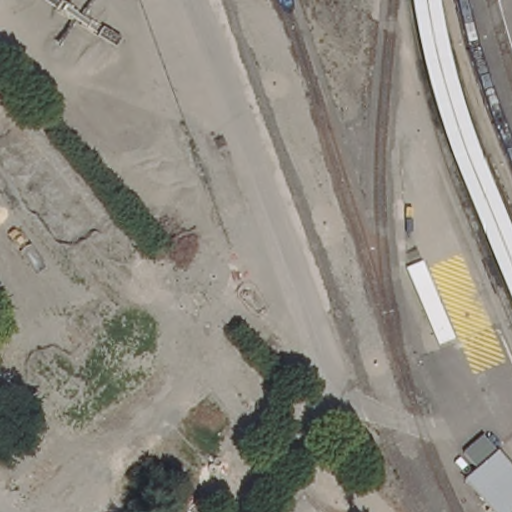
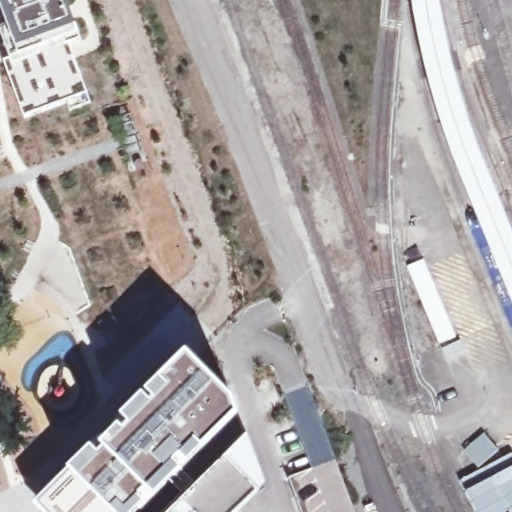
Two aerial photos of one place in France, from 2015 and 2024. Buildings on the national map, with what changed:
new [(82,66),(90,90),(25,111),(7,58),(15,58),(5,20),(17,17),(11,0),(78,0),(102,62),(82,66)]
unchanged [(452,161),(435,110),(422,61),(410,0),(437,0),(447,53),(460,104),(477,150),(512,236),(512,307),(452,161)]
unchanged [(438,345),(405,267),(422,261),(453,338),(438,345)]
new [(120,417),(118,415),(185,347),(230,392),(242,411),(171,481),(159,497),(98,441),(120,417)]
unchanged [(462,452),(481,433),(498,450),(477,469),(462,452)]
new [(171,511),(182,499),(224,457),(247,434),(264,484),(259,491),(238,512),(169,512),(171,511)]
new [(90,442),(93,446),(98,441),(159,497),(144,512),(40,512),(31,503),(90,442)]
unchanged [(512,465),(512,512),(499,512),(469,476),(498,450),(512,465)]
new [(335,461),(354,512),(299,512),(287,478),(335,461)]

